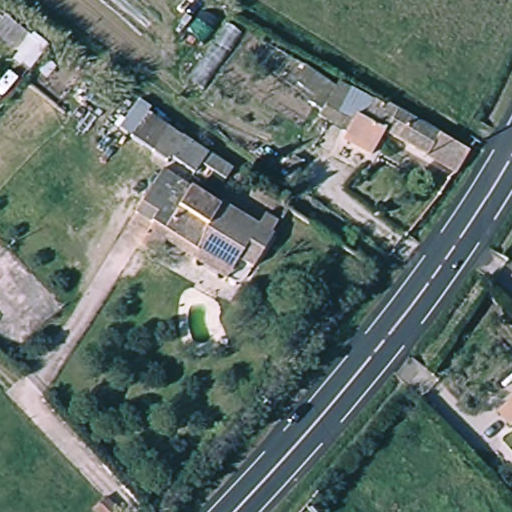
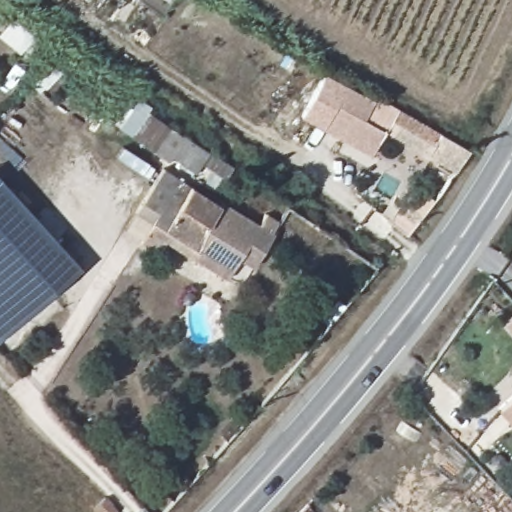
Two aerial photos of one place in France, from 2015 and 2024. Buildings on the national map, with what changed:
unchanged [(377,103),(378,101),(470,155),(456,178),(384,136),(371,159),(340,143),(344,134),(318,120),(340,83),(377,103)]
unchanged [(233,168),(227,178),(201,162),(199,166),(176,151),(168,162),(153,150),(170,127),(233,168)]
unchanged [(220,204),(221,202),(273,234),(252,269),(237,259),(225,277),(163,241),(168,232),(136,212),(163,169),(220,204)]
new [(0,339),(0,179),(80,268),(0,339)]
unchanged [(509,427),(495,412),(512,397),(512,424),(509,427)]
unchanged [(117,512),(95,512),(92,509),(107,495),(120,509),(117,512)]

